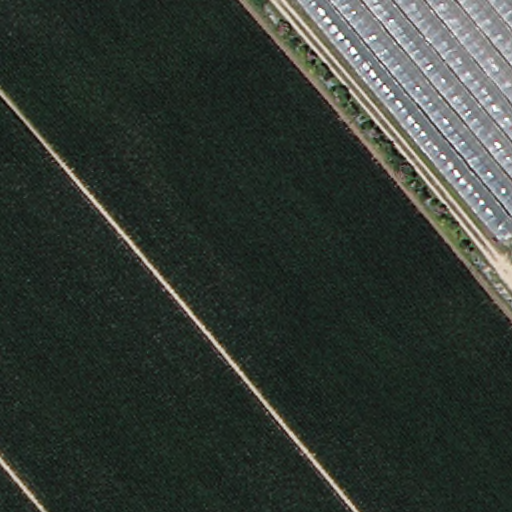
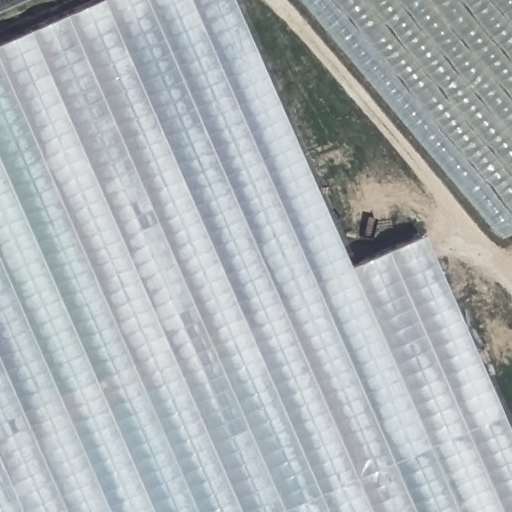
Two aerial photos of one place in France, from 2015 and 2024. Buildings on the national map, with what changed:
new [(0,13),(0,0),(30,0),(0,13)]
new [(345,269),(420,239),(512,451),(512,512),(0,512),(0,44),(102,0),(227,0),(345,269)]
unchanged [(304,0),(512,0),(512,234),(505,237),(304,0)]

